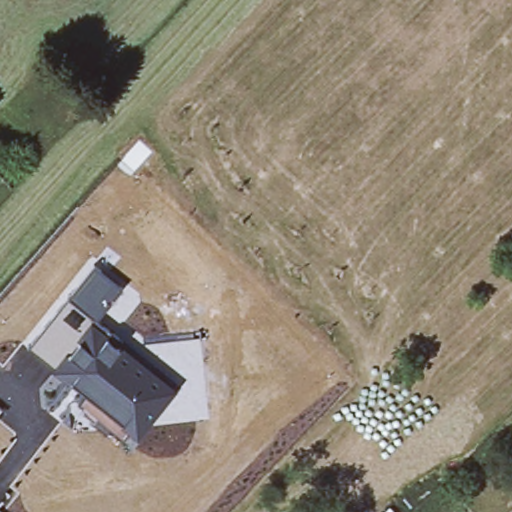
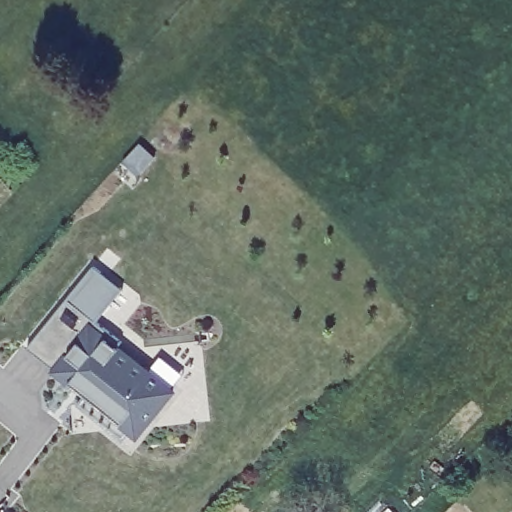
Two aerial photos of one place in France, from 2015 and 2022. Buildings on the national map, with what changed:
unchanged [(79,404),(85,394),(71,383),(52,369),(54,367),(29,347),(94,267),(124,292),(95,323),(110,335),(112,333),(123,344),(121,347),(175,392),(135,440),(127,432),(122,438),(79,404)]

